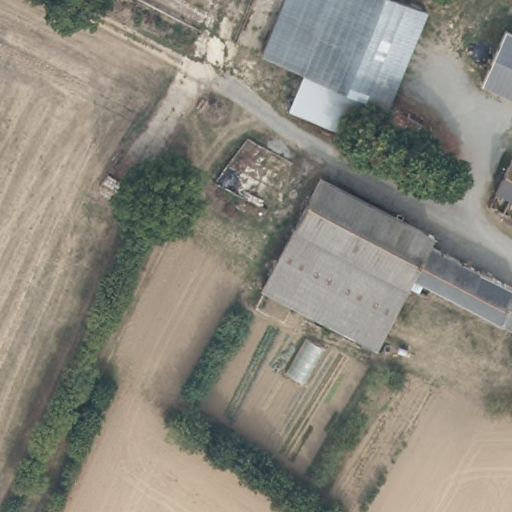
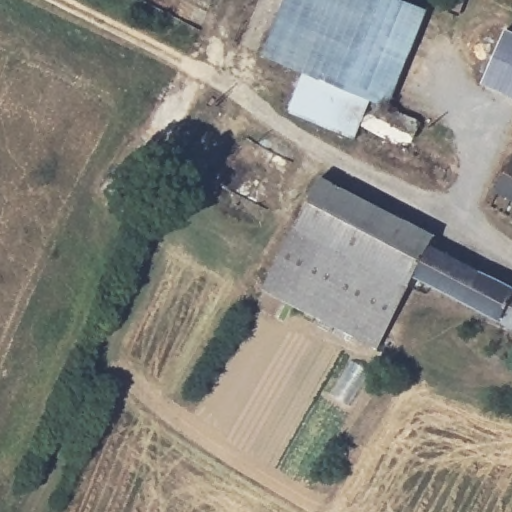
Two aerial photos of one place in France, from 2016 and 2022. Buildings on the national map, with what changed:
unchanged [(389,109),(419,124),(409,146),(364,126),(357,141),(291,111),(304,73),(264,58),(285,0),(390,0),(428,16),(389,109)]
unchanged [(512,39),(512,92),(492,83),(512,39)]
unchanged [(512,163),(512,206),(495,199),(512,163)]
unchanged [(436,238),(433,245),(416,281),(413,286),(297,229),(323,180),(436,238)]
unchanged [(380,352),(265,293),(297,229),(413,286),(380,352)]
unchanged [(512,332),(416,281),(433,245),(512,287),(512,332)]

